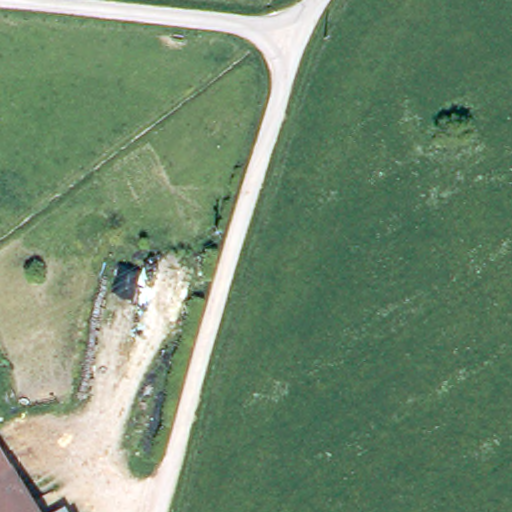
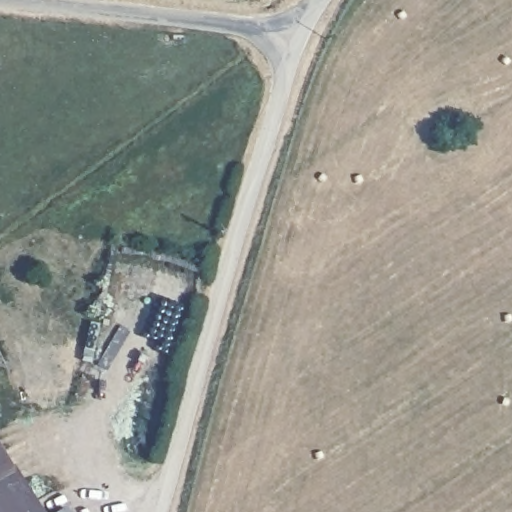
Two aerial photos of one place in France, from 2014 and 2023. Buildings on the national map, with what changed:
unchanged [(0,512),(0,438),(42,512),(0,512)]
unchanged [(71,512),(63,512),(69,508),(71,512)]

